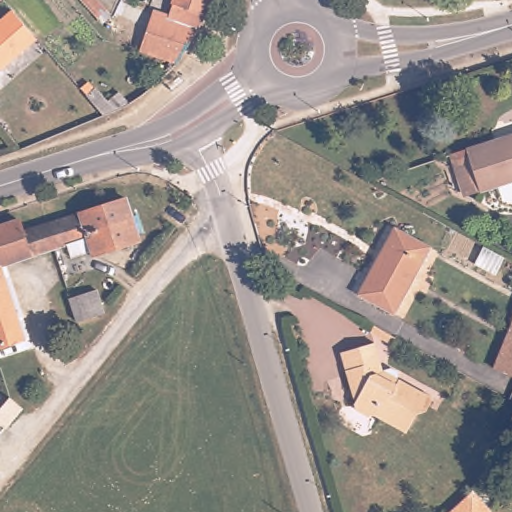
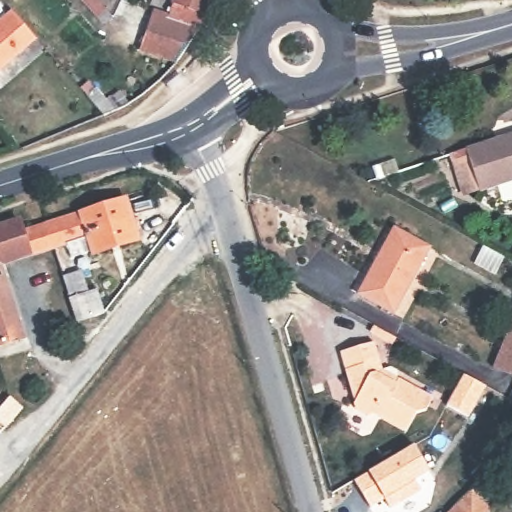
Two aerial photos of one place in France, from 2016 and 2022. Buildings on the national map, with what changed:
unchanged [(144,49),(156,12),(166,15),(172,0),(209,0),(208,3),(200,24),(187,46),(180,56),(176,62),(144,49)]
unchanged [(35,37),(19,51),(0,67),(0,28),(16,14),(35,37)]
unchanged [(463,144),(473,141),(512,128),(512,176),(486,185),(477,187),(463,144)]
unchanged [(42,219),(125,194),(137,235),(92,250),(90,245),(68,252),(63,239),(50,243),(42,219)]
unchanged [(21,225),(42,219),(50,243),(0,258),(0,221),(18,215),(21,225)]
unchanged [(388,309),(355,288),(395,226),(421,244),(428,249),(388,309)]
unchanged [(0,340),(0,269),(20,333),(0,340)]
unchanged [(66,295),(92,286),(100,312),(74,320),(66,295)]
unchanged [(491,362),(512,312),(512,373),(491,362)]
unchanged [(340,347),(373,338),(381,363),(380,367),(390,365),(396,368),(398,377),(432,396),(425,407),(416,410),(405,428),(373,411),(367,412),(357,407),(355,400),(358,395),(355,385),(352,386),(340,347)]
new [(463,373),(487,386),(470,420),(445,406),(463,373)]
unchanged [(6,400),(10,395),(24,406),(11,421),(5,429),(0,424),(0,407),(6,400)]
new [(367,472),(414,444),(430,472),(416,480),(422,490),(390,509),(385,500),(370,508),(355,481),(367,472)]
unchanged [(472,492),(489,512),(449,512),(472,492)]

